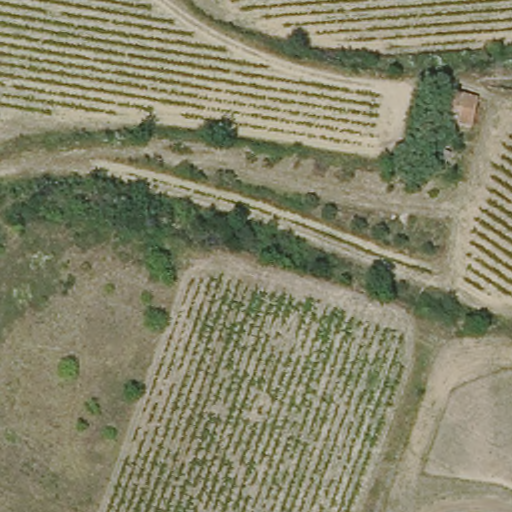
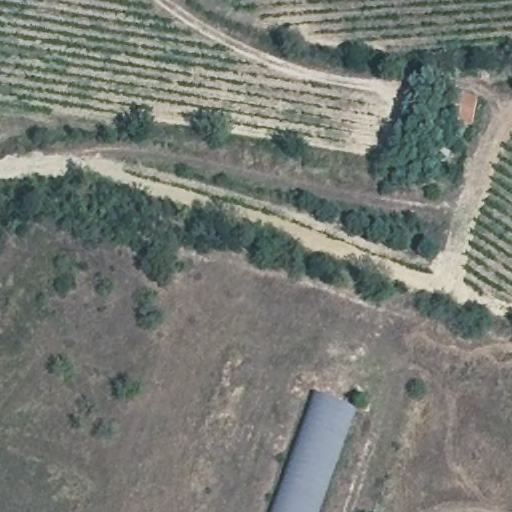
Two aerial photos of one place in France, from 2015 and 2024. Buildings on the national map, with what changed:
unchanged [(465,123),(433,114),(441,90),(471,99),(465,123)]
new [(318,512),(269,512),(313,392),(355,407),(318,512)]

